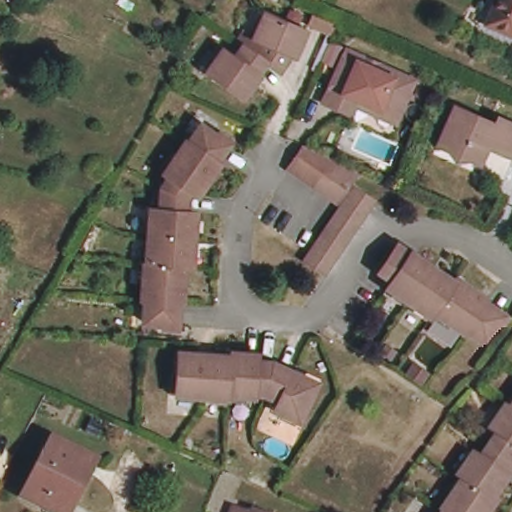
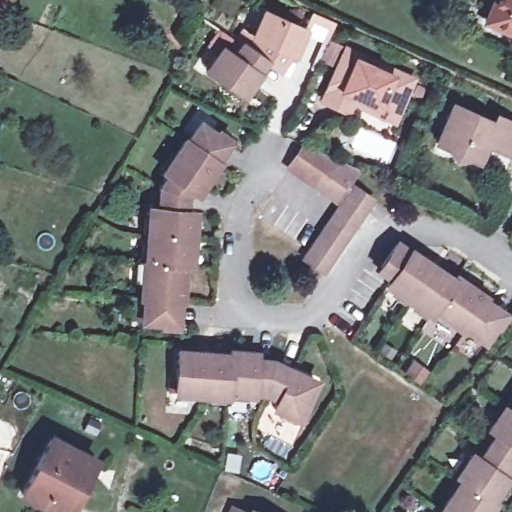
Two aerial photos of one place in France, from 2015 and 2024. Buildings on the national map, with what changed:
unchanged [(495,0),(512,0),(512,32),(486,19),(495,0)]
unchanged [(243,50),(259,60),(266,46),(258,41),(269,17),(307,35),(296,59),(293,58),(283,73),(267,64),(259,77),(261,79),(246,100),(209,76),(225,53),(236,59),(243,50)]
unchanged [(379,117),(358,106),(353,116),(326,103),(350,53),(416,85),(401,118),(397,125),(379,117)]
unchanged [(486,165),(446,146),(462,110),(502,129),(506,121),(512,124),(512,156),(494,148),(486,165)]
unchanged [(171,322),(138,319),(139,298),(136,298),(138,262),(142,262),(144,233),(146,206),(154,207),(157,183),(164,172),(161,169),(183,138),(186,140),(198,123),(228,143),(216,160),(220,163),(197,195),(190,190),(188,210),(194,210),(191,237),(189,266),(184,265),(181,302),(178,301),(177,323),(171,322)]
unchanged [(338,195),(336,194),(289,161),(304,140),(353,173),(338,195)]
unchanged [(325,264),(306,252),(354,182),(372,195),(325,264)]
unchanged [(496,323),(480,346),(462,333),(458,339),(427,317),(425,319),(383,289),(389,280),(377,272),(393,249),(394,247),(407,256),(408,254),(413,258),(450,285),(453,281),(484,303),(481,306),(499,319),(496,323)]
unchanged [(232,400),(181,396),(185,351),(236,355),(237,351),(264,354),(264,361),(278,362),(322,380),(305,420),(279,409),(284,398),(274,394),(261,394),(260,400),(233,397),(232,400)]
unchanged [(507,480),(493,501),(496,503),(490,512),(442,512),(463,481),(459,477),(474,455),(491,430),(506,408),(511,411),(512,409),(512,469),(505,479),(507,480)]
unchanged [(58,512),(23,493),(50,438),(84,456),(90,459),(82,476),(70,499),(63,512),(58,512)]
unchanged [(243,512),(226,512),(228,507),(243,512)]
unchanged [(254,512),(244,512),(245,509),(254,512)]

